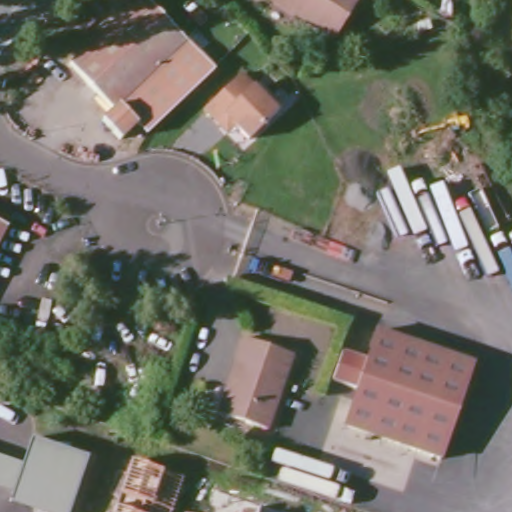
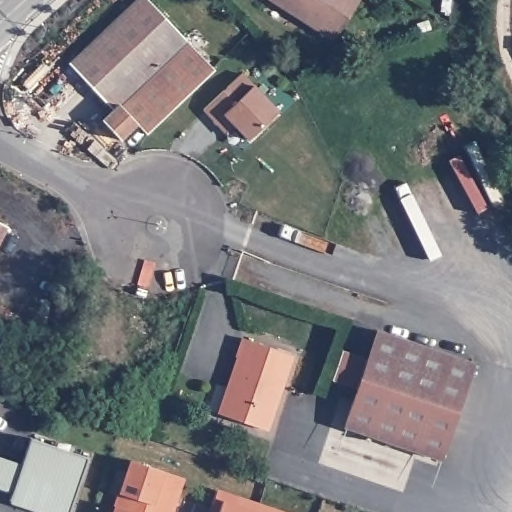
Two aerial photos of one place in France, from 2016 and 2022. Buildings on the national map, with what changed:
unchanged [(117,135),(100,116),(110,106),(67,59),(133,0),(151,0),(213,69),(143,131),(133,121),(117,135)]
unchanged [(330,32),(315,22),(311,27),(292,15),(295,11),(279,0),(352,0),(330,32)]
unchanged [(218,123),(203,107),(242,73),(277,112),(248,139),(234,124),(225,132),(218,123)]
unchanged [(8,227),(0,243),(0,223),(8,227)]
unchanged [(348,427),(378,331),(474,363),(442,459),(348,427)]
unchanged [(225,388),(227,389),(238,359),(235,357),(242,338),(290,354),(263,431),(225,417),(217,414),(225,388)]
unchanged [(25,467),(33,440),(90,457),(72,512),(36,512),(12,504),(15,495),(0,489),(0,458),(25,467)]
unchanged [(164,469),(183,477),(172,512),(114,512),(132,460),(164,469)]
new [(215,505),(220,492),(280,512),(221,512),(222,507),(215,505)]

